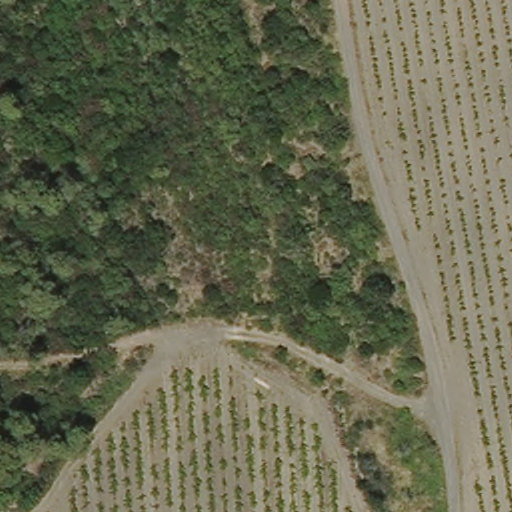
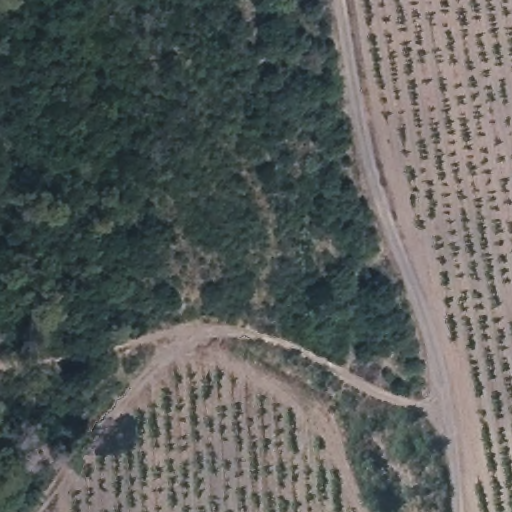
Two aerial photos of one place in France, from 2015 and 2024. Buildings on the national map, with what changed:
[]

